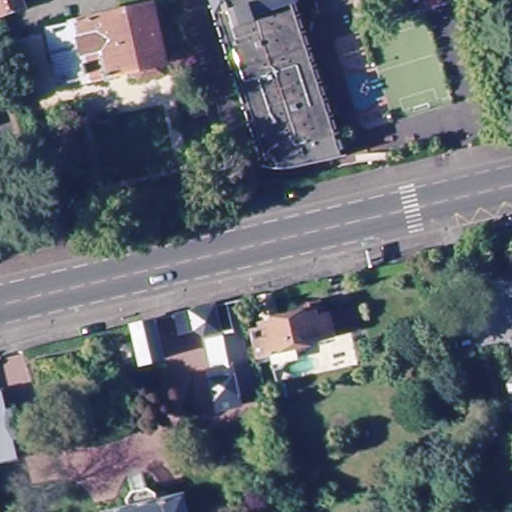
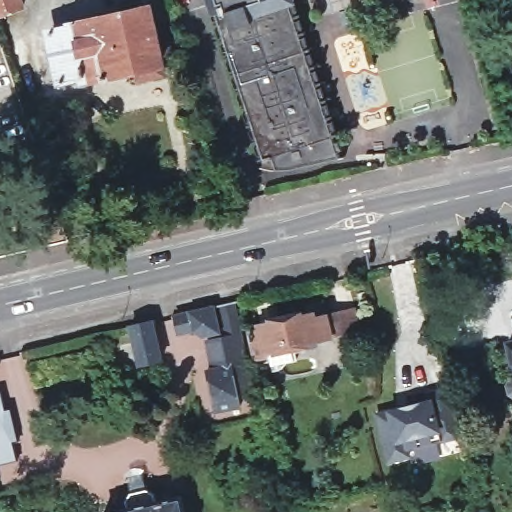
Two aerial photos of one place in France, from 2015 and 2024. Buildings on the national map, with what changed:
unchanged [(4,19),(0,9),(0,0),(25,0),(28,10),(4,19)]
unchanged [(287,161),(266,163),(262,148),(249,151),(213,0),(291,0),(328,156),(287,161)]
unchanged [(146,91),(141,71),(106,80),(90,84),(89,79),(67,85),(64,83),(51,34),(54,31),(75,26),(75,23),(151,5),(157,29),(174,25),(180,53),(164,56),(166,66),(170,85),(146,91)]
unchanged [(0,51),(0,26),(8,49),(0,51)]
unchanged [(322,315),(333,313),(353,307),(359,331),(338,336),(328,340),(300,345),(302,350),(293,352),(294,359),(282,362),(277,368),(268,371),(265,357),(255,359),(251,335),(260,332),(260,327),(253,300),(271,296),(277,323),(311,314),(310,306),(318,304),(320,312),(321,312),(322,315)]
unchanged [(234,304),(247,367),(242,369),(259,437),(250,440),(242,411),(220,415),(210,375),(218,373),(211,346),(225,342),(216,308),(234,304)]
unchanged [(214,309),(220,335),(219,337),(204,340),(193,335),(177,338),(172,320),(214,309)]
unchanged [(152,325),(161,363),(136,368),(132,350),(126,351),(124,340),(131,339),(129,330),(152,325)]
unchanged [(509,393),(505,390),(503,378),(512,374),(512,392),(509,393)]
new [(13,409),(19,440),(13,442),(17,460),(0,464),(0,391),(1,391),(6,410),(13,409)]
new [(373,413),(386,410),(432,399),(442,432),(438,433),(440,441),(411,449),(412,459),(388,464),(373,413)]
unchanged [(128,511),(126,500),(131,493),(150,489),(157,493),(160,504),(184,498),(187,512),(123,512),(128,511)]

